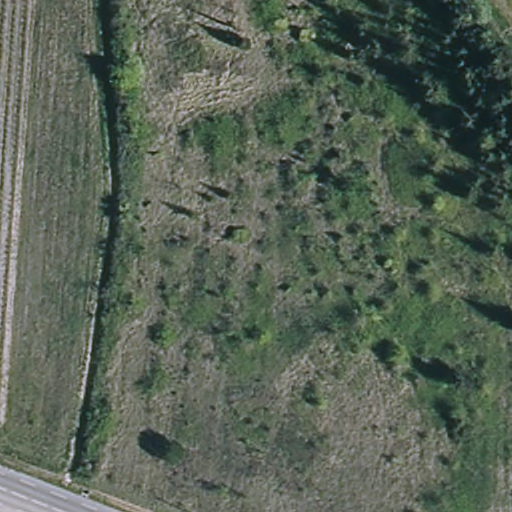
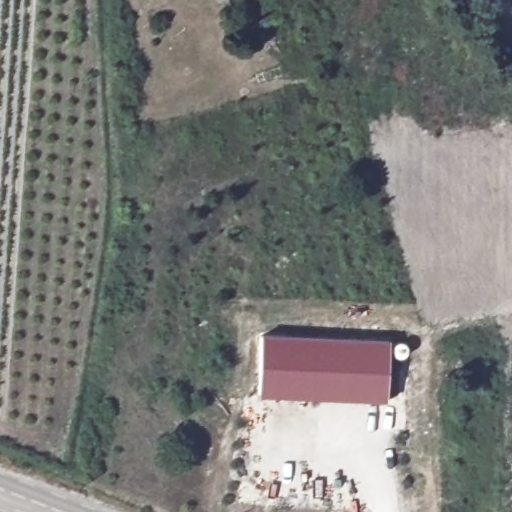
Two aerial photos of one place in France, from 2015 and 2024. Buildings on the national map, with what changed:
new [(260,339),(387,344),(385,404),(258,399),(260,339)]

